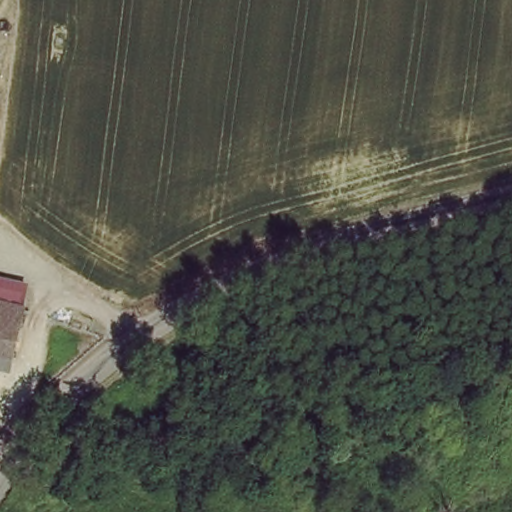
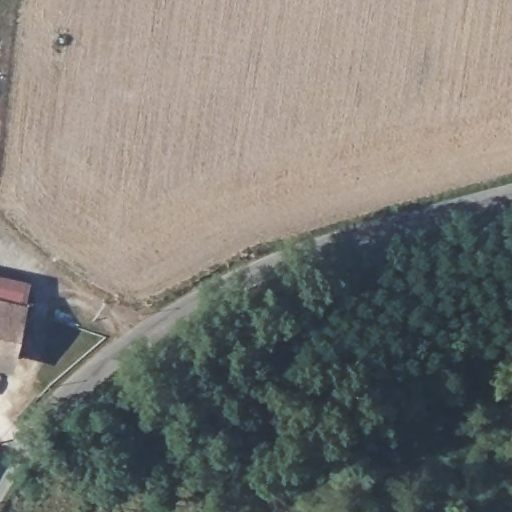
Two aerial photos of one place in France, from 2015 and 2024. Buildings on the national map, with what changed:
unchanged [(0,282),(31,289),(25,311),(0,306),(0,282)]
unchanged [(0,364),(0,306),(25,311),(10,366),(0,364)]

